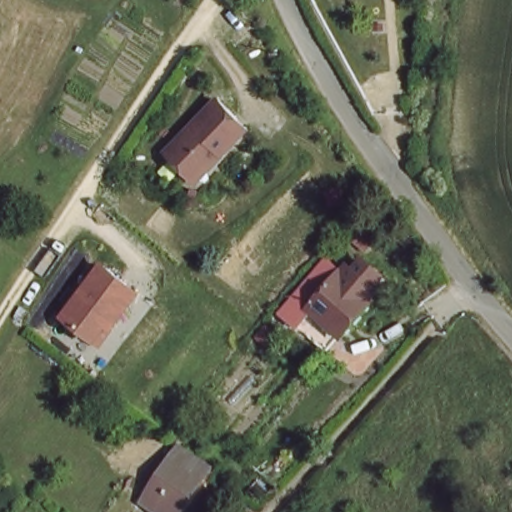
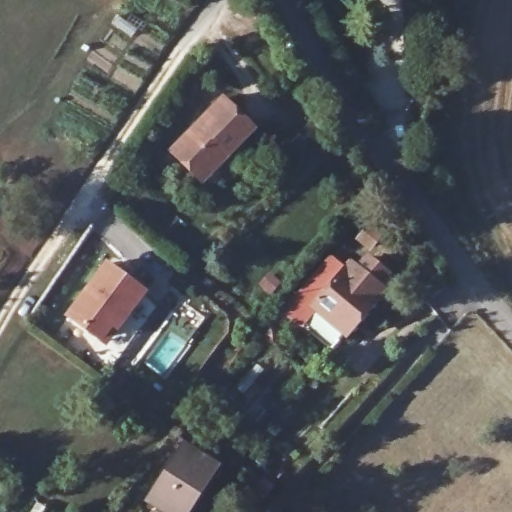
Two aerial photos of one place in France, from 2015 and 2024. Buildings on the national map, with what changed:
unchanged [(254,129),(203,180),(172,150),(227,97),(254,129)]
unchanged [(112,346),(67,316),(109,261),(152,291),(112,346)]
unchanged [(376,293),(340,336),(336,333),(317,349),(284,312),(331,264),(336,270),(344,262),(376,293)]
unchanged [(213,468),(184,512),(181,512),(155,495),(185,448),(213,468)]

